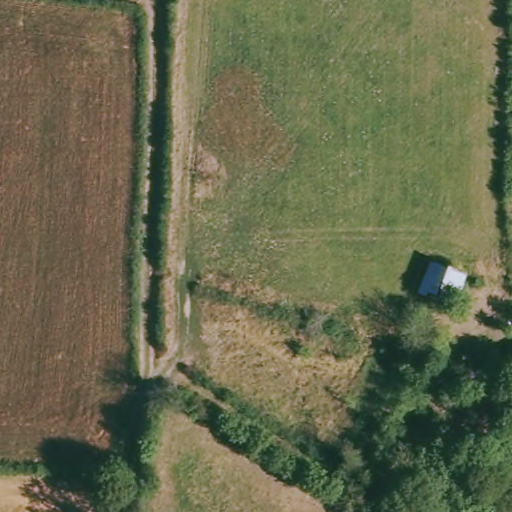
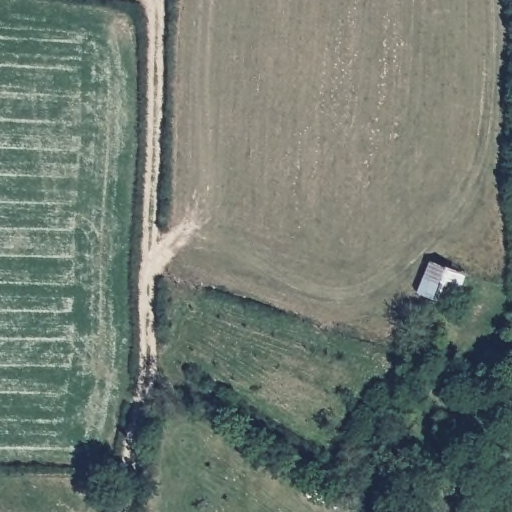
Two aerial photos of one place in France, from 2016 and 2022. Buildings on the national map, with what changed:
unchanged [(436,260),(478,275),(471,297),(467,312),(424,297),(429,282),(436,260)]
unchanged [(485,355),(512,360),(512,378),(483,372),(485,355)]

